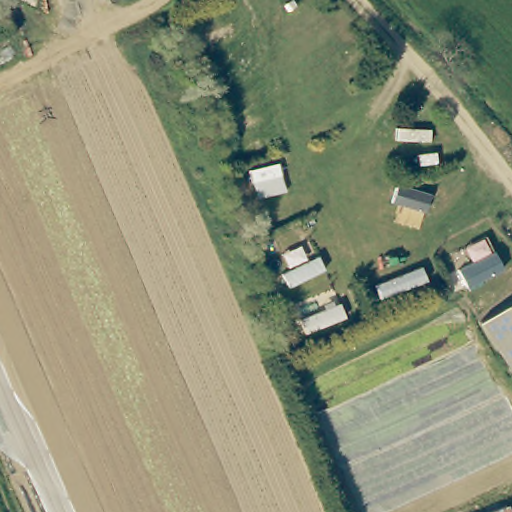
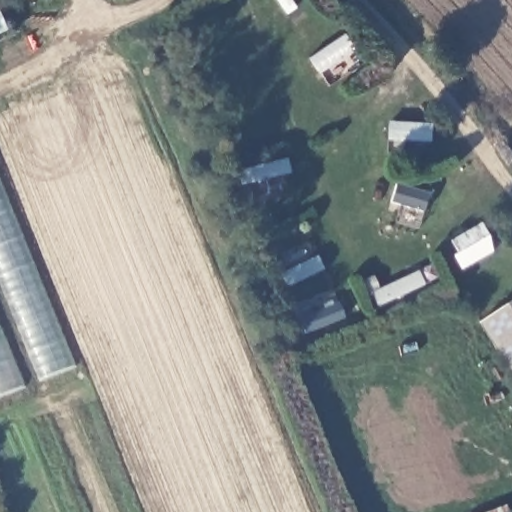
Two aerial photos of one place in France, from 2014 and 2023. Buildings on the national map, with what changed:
new [(79,365),(0,395),(0,171),(79,365)]
unchanged [(512,302),(512,368),(481,321),(512,302)]

